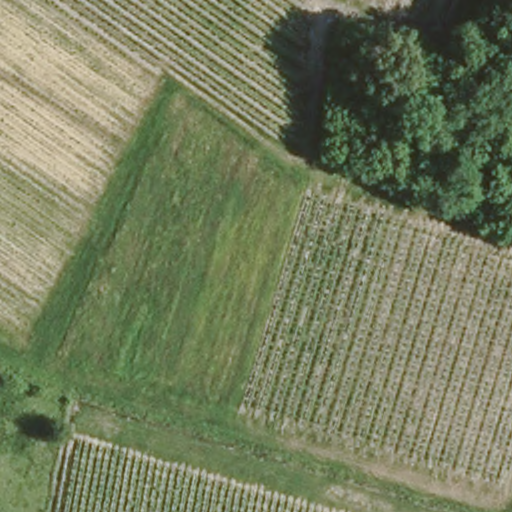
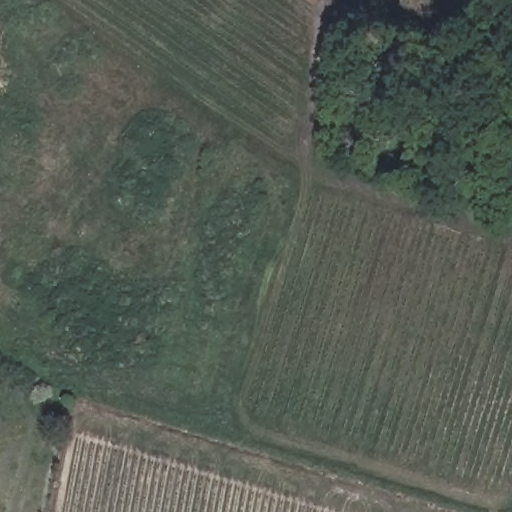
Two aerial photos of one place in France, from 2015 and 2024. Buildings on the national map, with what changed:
[]

